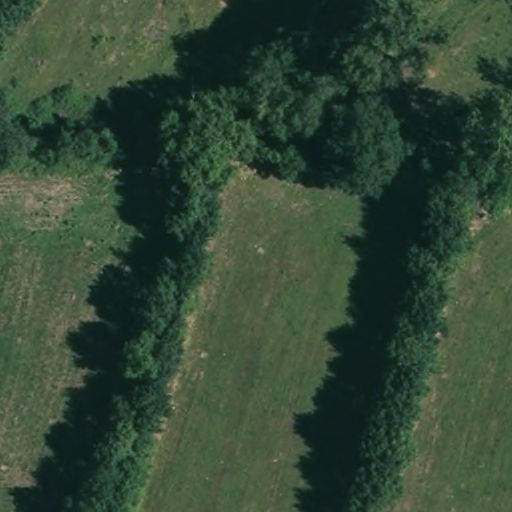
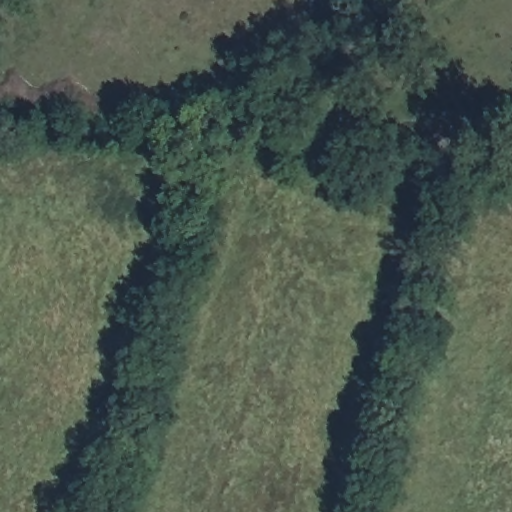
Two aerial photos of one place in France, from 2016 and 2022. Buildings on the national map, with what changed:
unchanged [(491,187),(490,213),(458,205),(460,182),(491,187)]

